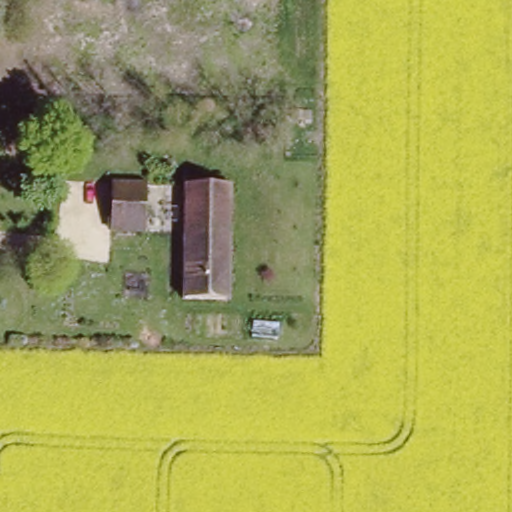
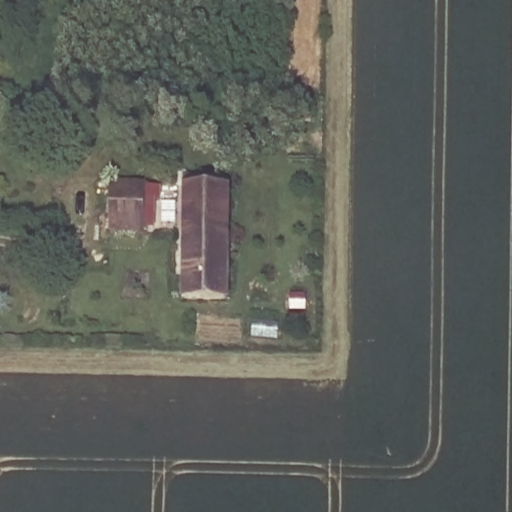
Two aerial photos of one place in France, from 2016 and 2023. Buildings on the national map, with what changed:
unchanged [(225,183),(226,305),(205,305),(184,305),(183,183),(225,183)]
unchanged [(160,185),(160,228),(115,229),(115,185),(160,185)]

